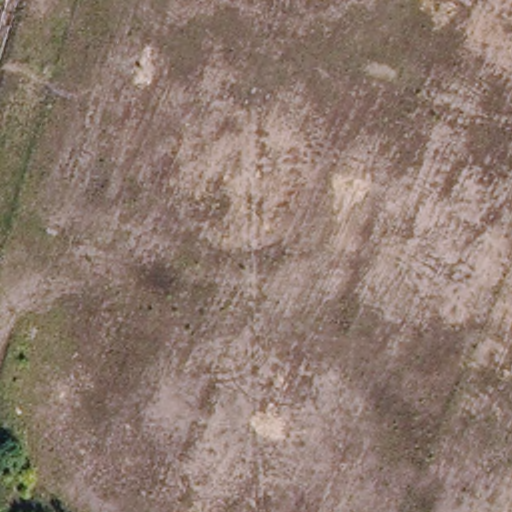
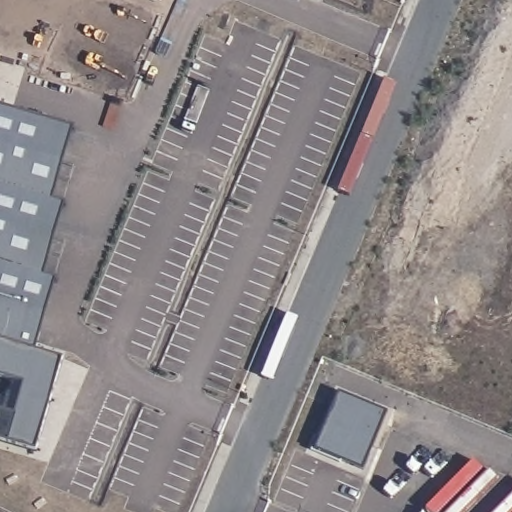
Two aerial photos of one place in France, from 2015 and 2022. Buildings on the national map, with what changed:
new [(0,439),(0,409),(16,414),(25,382),(0,376),(0,107),(75,127),(55,200),(67,203),(54,248),(79,257),(97,264),(89,288),(70,281),(58,277),(36,350),(65,357),(37,450),(0,439)]

